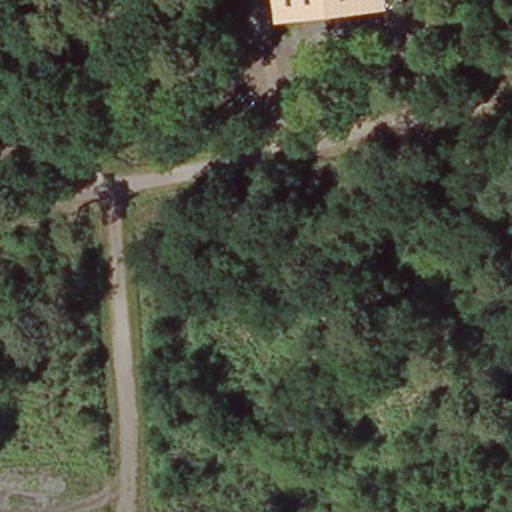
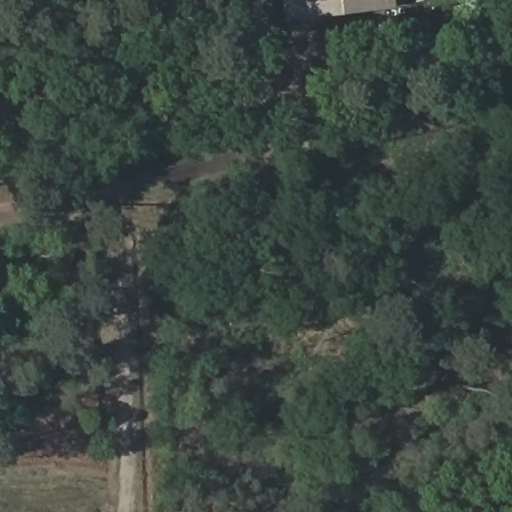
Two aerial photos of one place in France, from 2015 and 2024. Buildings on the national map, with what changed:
unchanged [(390,9),(280,22),(277,0),(389,0),(390,9)]

